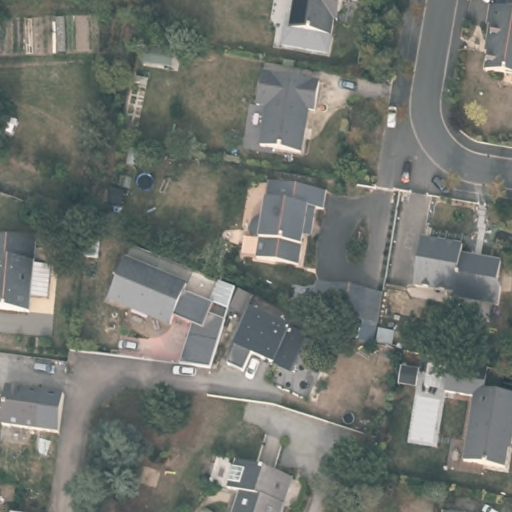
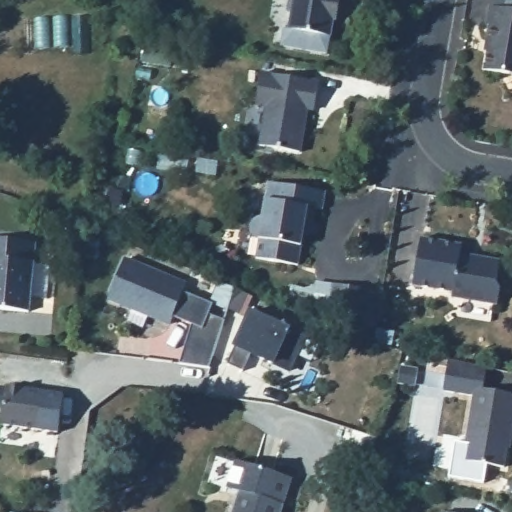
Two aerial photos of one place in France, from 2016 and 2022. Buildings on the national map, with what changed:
unchanged [(337,25),(330,25),(329,38),(289,32),(295,0),(341,0),(337,25)]
unchanged [(499,8),(512,11),(512,98),(480,92),(483,71),(479,70),(483,46),(480,45),(483,29),(495,32),(499,8)]
unchanged [(311,113),(300,111),(293,156),(257,148),(263,113),(252,112),(258,79),(315,88),(311,113)]
unchanged [(321,210),(316,209),(313,228),(304,226),(295,269),(254,262),(258,238),(248,236),(252,221),(262,222),(268,186),(322,194),(321,210)]
unchanged [(451,303),(451,297),(411,290),(419,240),(459,247),(459,256),(497,263),(492,289),(500,290),(496,310),(451,303)]
unchanged [(29,303),(27,317),(17,316),(0,314),(0,245),(22,248),(35,249),(33,268),(52,271),(49,304),(29,303)]
unchanged [(125,257),(187,284),(182,292),(211,305),(208,314),(225,322),(209,368),(179,363),(192,325),(173,317),(170,324),(108,298),(125,257)]
unchanged [(359,331),(325,324),(309,321),(315,288),(330,291),(365,297),(359,331)]
unchanged [(250,313),(303,341),(292,374),(251,354),(243,373),(227,366),(250,313)]
unchanged [(509,454),(507,453),(502,479),(460,471),(473,407),(444,402),(450,371),(487,379),(483,400),(512,406),(512,442),(509,454)]
unchanged [(6,384),(66,396),(60,432),(1,425),(6,384)]
unchanged [(271,512),(228,512),(231,501),(216,497),(223,470),(278,482),(271,512)]

